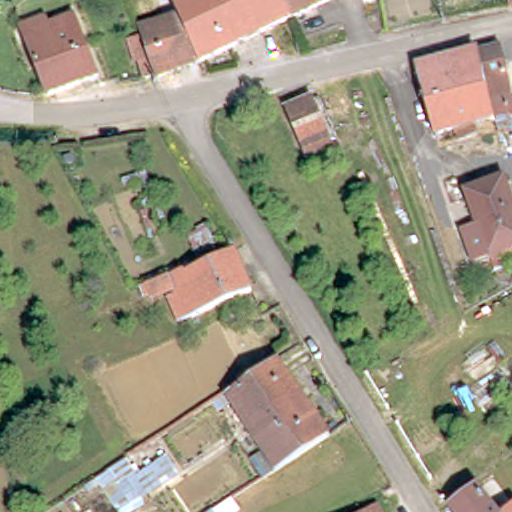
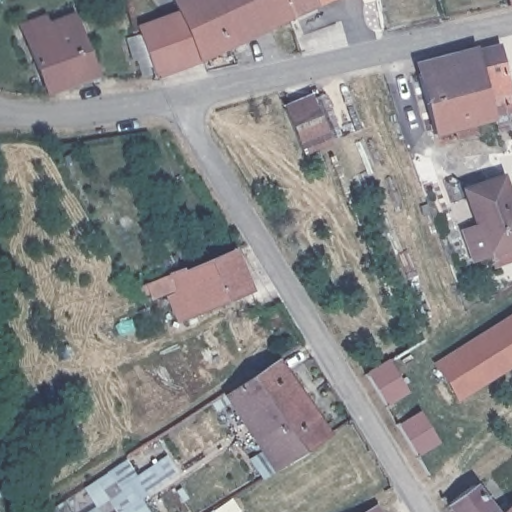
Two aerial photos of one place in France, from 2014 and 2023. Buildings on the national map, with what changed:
unchanged [(134,62),(130,64),(124,45),(136,40),(133,31),(173,17),(169,5),(179,0),(273,0),(284,22),(191,66),(151,81),(149,77),(139,81),(134,62)]
unchanged [(284,22),(273,0),(334,0),(284,22)]
unchanged [(507,0),(512,0),(512,5),(509,5),(507,0)]
unchanged [(70,14),(96,81),(69,90),(68,84),(42,93),(18,34),(70,14)]
unchanged [(435,136),(417,75),(414,65),(478,49),(478,51),(499,45),(510,102),(512,102),(512,113),(493,119),(476,125),(478,135),(456,140),(454,130),(435,136)]
unchanged [(330,142),(304,154),(283,110),(311,99),(330,142)]
unchanged [(488,255),(472,260),(461,230),(477,224),(466,190),(502,178),(512,208),(512,257),(491,263),(488,255)]
unchanged [(178,270),(179,271),(228,249),(247,290),(174,321),(163,296),(171,293),(168,287),(146,297),(144,291),(138,295),(134,286),(178,270)]
new [(512,313),(512,367),(459,401),(434,363),(512,313)]
new [(386,406),(365,372),(390,357),(409,390),(386,406)]
unchanged [(263,476),(256,466),(264,461),(224,400),(214,405),(206,400),(219,391),(222,394),(271,361),(273,360),(325,435),(263,476)]
new [(441,442),(417,457),(396,424),(421,410),(441,442)]
unchanged [(474,488),(486,477),(509,505),(502,512),(448,512),(443,505),(470,485),(474,488)]
unchanged [(512,509),(512,512),(502,512),(509,505),(512,509)]
unchanged [(376,512),(373,512),(376,510),(376,512)]

